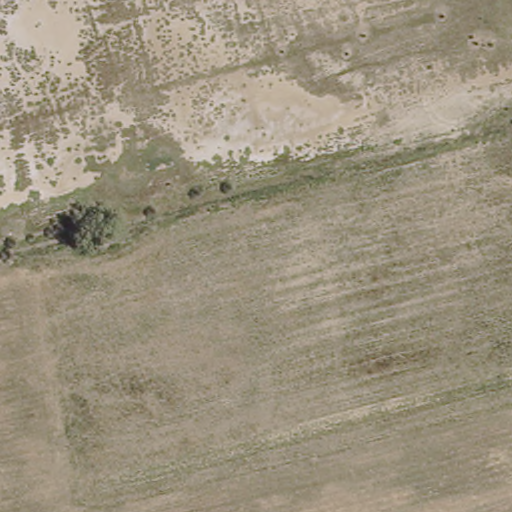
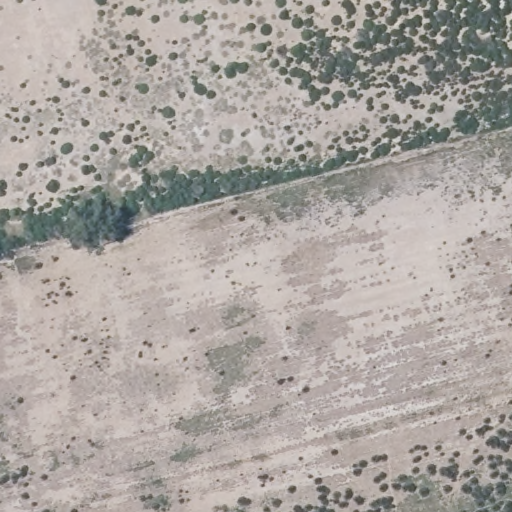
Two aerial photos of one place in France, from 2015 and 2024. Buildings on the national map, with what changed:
unchanged [(98,239),(112,234),(117,244),(101,249),(98,239)]

